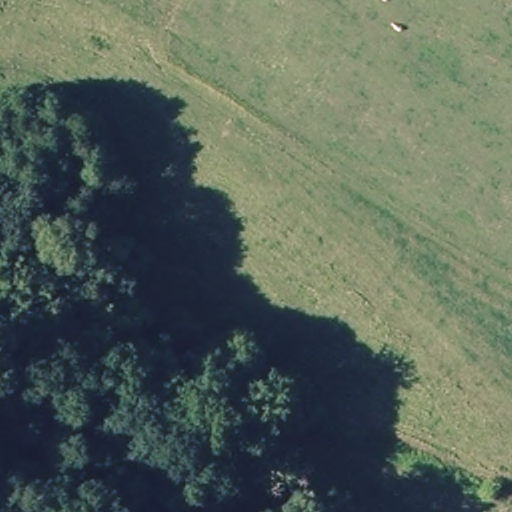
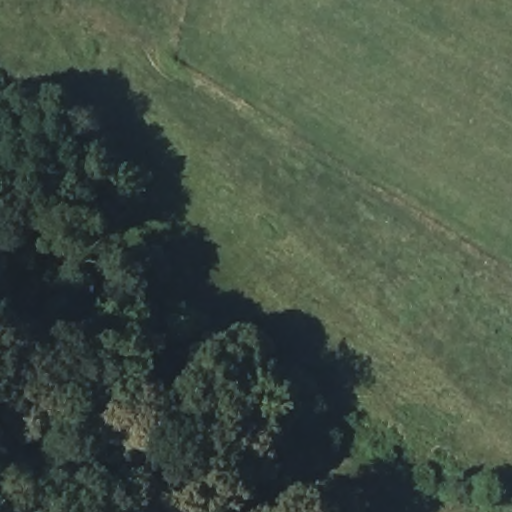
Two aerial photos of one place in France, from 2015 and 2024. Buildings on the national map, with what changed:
[]

